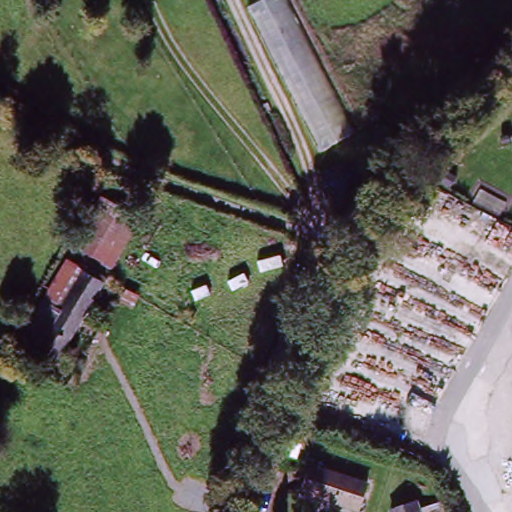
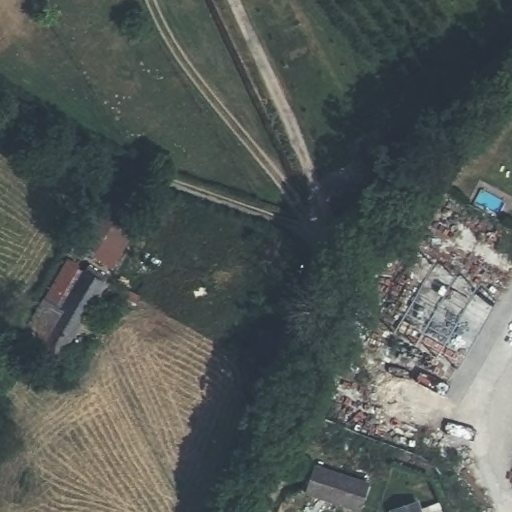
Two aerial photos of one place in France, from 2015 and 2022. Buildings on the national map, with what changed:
demolished [(361,145),(321,163),(305,129),(241,9),(259,0),(286,0),(361,145)]
unchanged [(74,244),(102,199),(125,212),(97,257),(74,244)]
unchanged [(141,224),(114,267),(97,257),(125,212),(141,224)]
unchanged [(107,278),(57,358),(22,337),(42,302),(65,263),(84,274),(90,266),(107,278)]
unchanged [(345,512),(302,499),(310,471),(364,487),(356,512),(345,512)]
unchanged [(410,500),(414,512),(389,512),(387,508),(410,500)]

